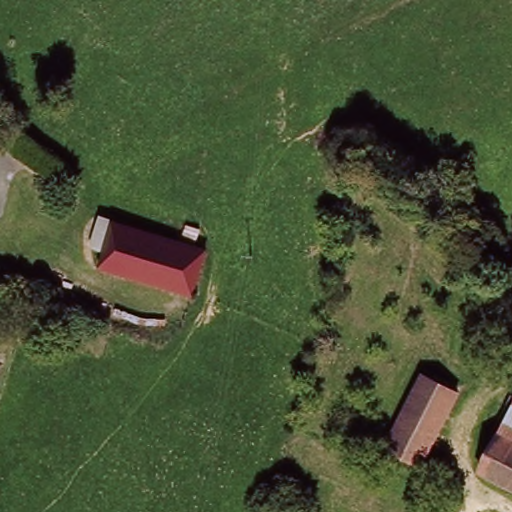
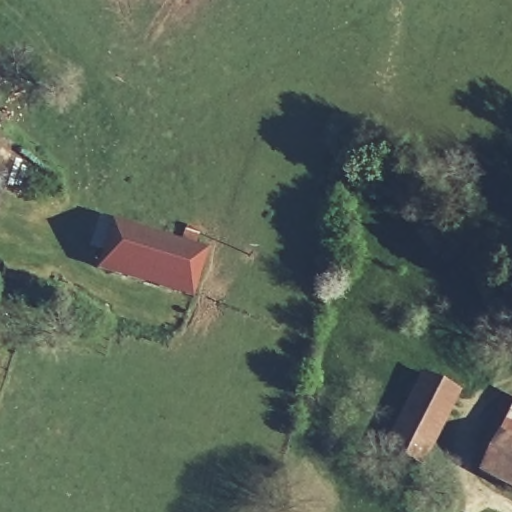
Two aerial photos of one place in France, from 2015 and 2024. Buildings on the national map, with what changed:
unchanged [(96,269),(100,250),(88,247),(96,217),(201,245),(188,294),(96,269)]
unchanged [(387,444),(420,373),(456,390),(422,461),(387,444)]
unchanged [(492,432),(509,396),(512,398),(512,442),(492,432)]
unchanged [(474,469),(492,432),(512,442),(512,488),(474,469)]

